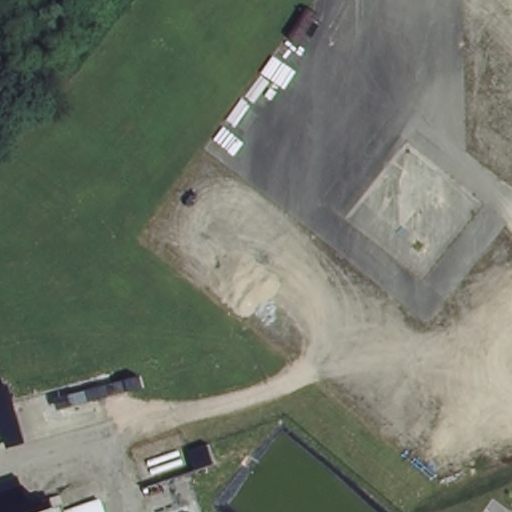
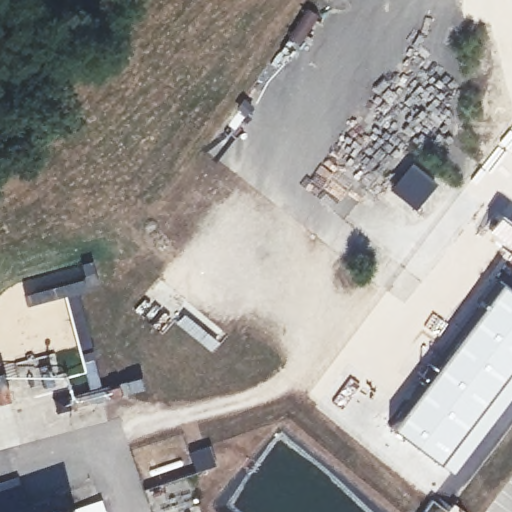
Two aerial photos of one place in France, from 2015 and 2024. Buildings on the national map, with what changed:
new [(512,222),(512,241),(508,246),(486,228),(499,212),(512,222)]
new [(512,291),(512,389),(451,471),(390,425),(499,281),(512,291)]
unchanged [(215,445),(236,438),(243,458),(222,466),(215,445)]
unchanged [(67,512),(9,512),(61,494),(67,512)]

